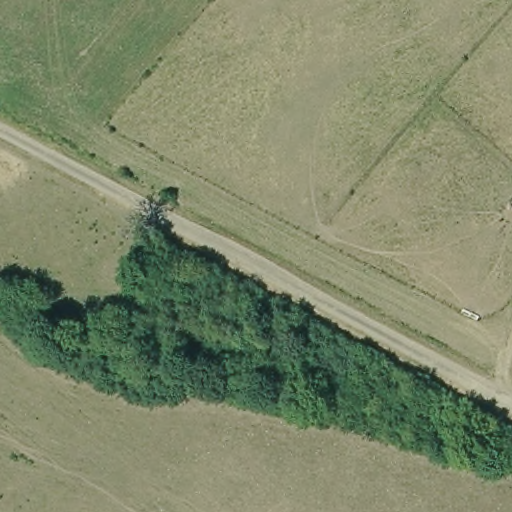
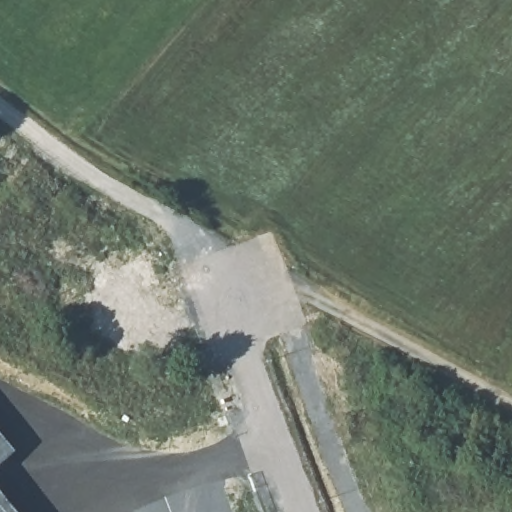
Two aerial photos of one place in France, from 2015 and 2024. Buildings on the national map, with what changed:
new [(0,463),(0,434),(15,451),(0,463)]
new [(0,492),(17,512),(0,512),(0,492)]

